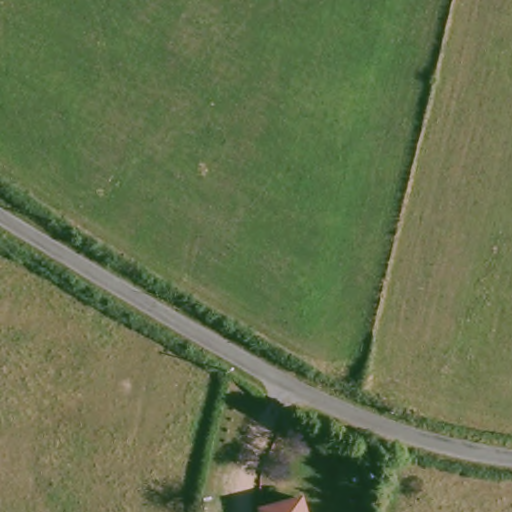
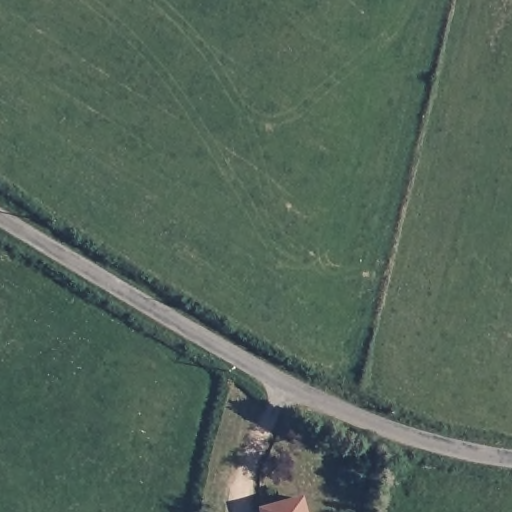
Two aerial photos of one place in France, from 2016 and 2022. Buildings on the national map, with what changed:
unchanged [(297,512),(257,512),(291,498),(297,512)]

